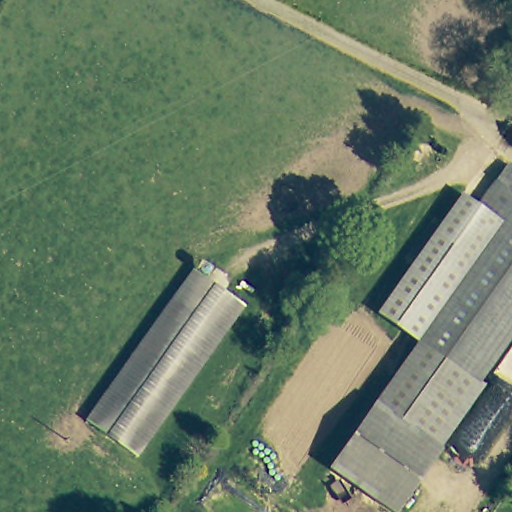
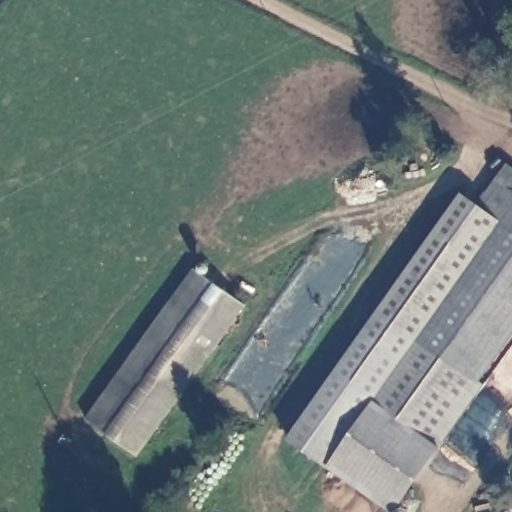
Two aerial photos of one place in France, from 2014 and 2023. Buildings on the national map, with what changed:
unchanged [(480,202),(507,162),(512,165),(512,206),(503,219),(480,202)]
unchanged [(421,339),(392,320),(380,311),(462,192),(474,200),(503,219),(421,339)]
unchanged [(421,339),(503,219),(512,206),(512,312),(469,375),(420,342),(421,339)]
unchanged [(247,304),(141,459),(91,426),(197,269),(247,304)]
new [(288,444),(380,311),(392,320),(421,339),(420,342),(377,404),(334,468),(288,444)]
unchanged [(486,386),(443,449),(377,404),(420,342),(469,375),(486,386)]
unchanged [(377,404),(443,449),(401,512),(400,512),(334,468),(377,404)]

